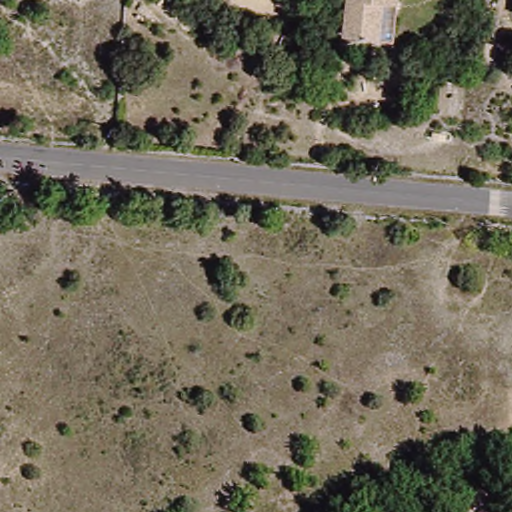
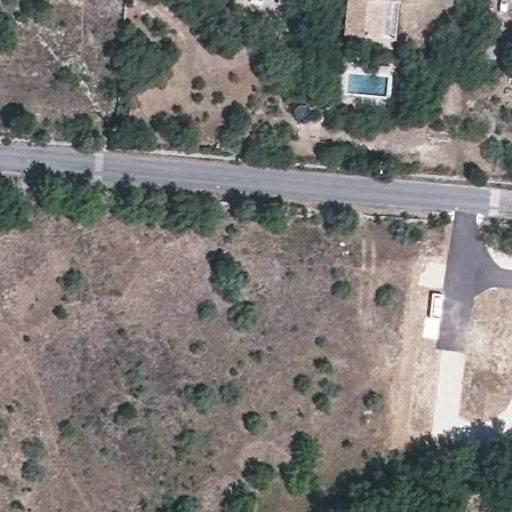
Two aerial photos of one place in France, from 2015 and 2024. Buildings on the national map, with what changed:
unchanged [(382,42),(345,40),(349,0),(402,0),(402,2),(398,43),(382,42)]

